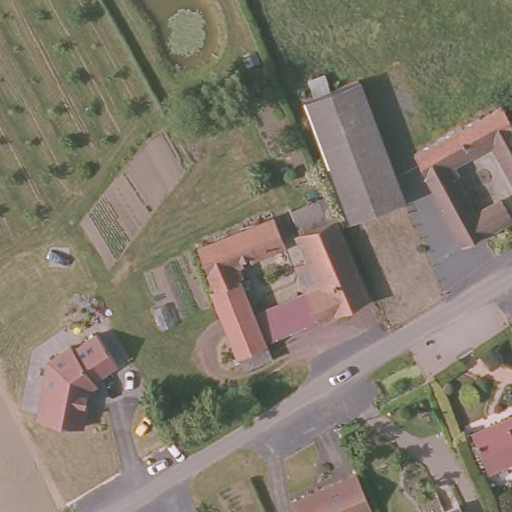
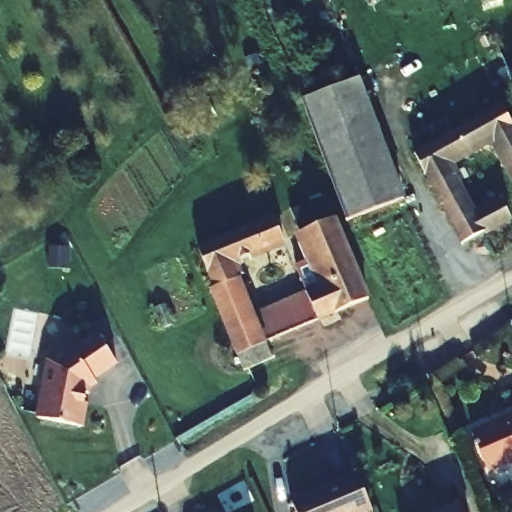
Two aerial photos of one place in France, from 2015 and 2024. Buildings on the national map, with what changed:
unchanged [(405,197),(347,220),(304,107),(359,85),(405,197)]
unchanged [(446,156),(474,209),(499,195),(509,213),(460,240),(410,149),(471,115),(473,117),(489,107),(499,101),(512,125),(512,174),(490,132),(446,156)]
unchanged [(285,237),(234,259),(255,312),(267,337),(274,355),(247,367),(215,286),(217,285),(200,243),(275,212),(285,237)]
unchanged [(267,337),(255,312),(323,282),(301,229),(335,215),(370,293),(267,337)]
unchanged [(64,347),(67,350),(90,335),(109,363),(85,378),(87,382),(80,387),(80,391),(77,391),(75,403),(77,403),(74,427),(32,420),(42,362),(64,347)]
unchanged [(482,481),(467,445),(512,425),(512,468),(482,481)]
unchanged [(359,512),(287,512),(282,502),(351,472),(367,509),(359,512)]
unchanged [(432,512),(460,500),(464,512),(432,512)]

